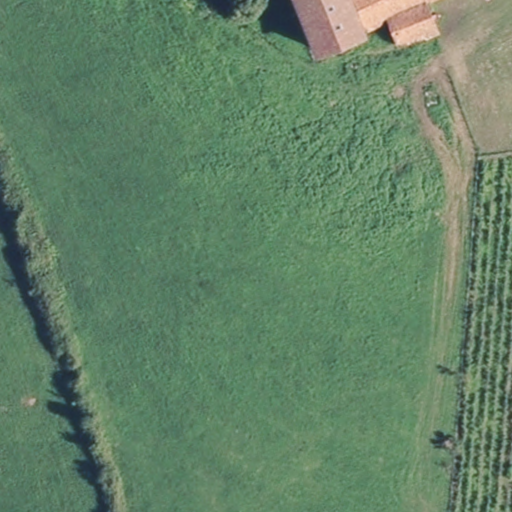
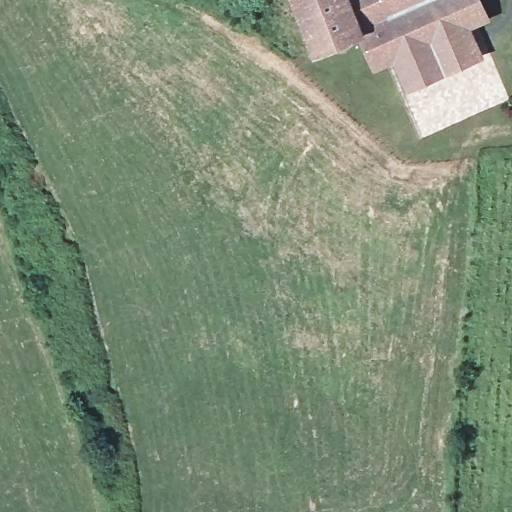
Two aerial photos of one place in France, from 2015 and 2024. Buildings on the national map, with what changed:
unchanged [(367,41),(307,60),(289,0),(354,0),(367,41)]
new [(493,20),(473,29),(487,57),(408,91),(395,62),(377,70),(365,42),(367,41),(354,0),(485,0),(493,20)]
demolished [(412,28),(405,0),(477,0),(426,20),(433,44),(398,55),(392,34),(412,28)]

